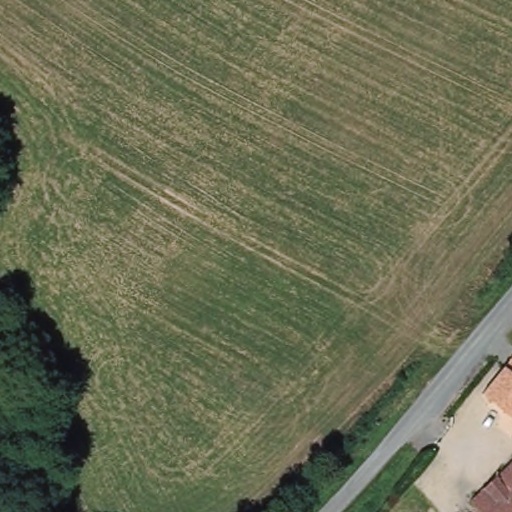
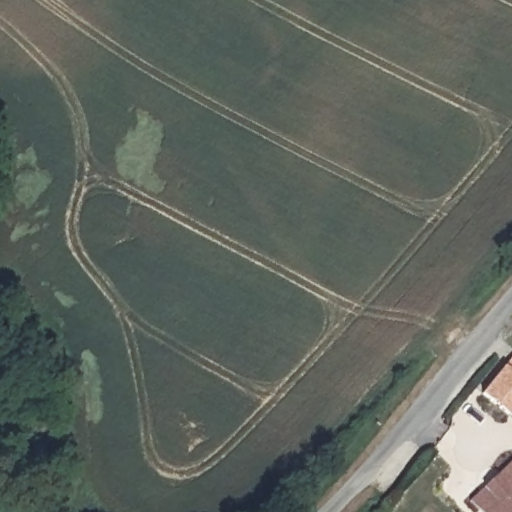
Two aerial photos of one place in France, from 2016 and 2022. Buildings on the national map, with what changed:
unchanged [(497,347),(512,359),(512,374),(489,402),(471,386),(497,347)]
unchanged [(489,402),(512,374),(512,418),(489,402)]
unchanged [(493,475),(512,456),(512,494),(493,475)]
unchanged [(467,500),(493,475),(512,494),(512,512),(480,512),(467,500)]

